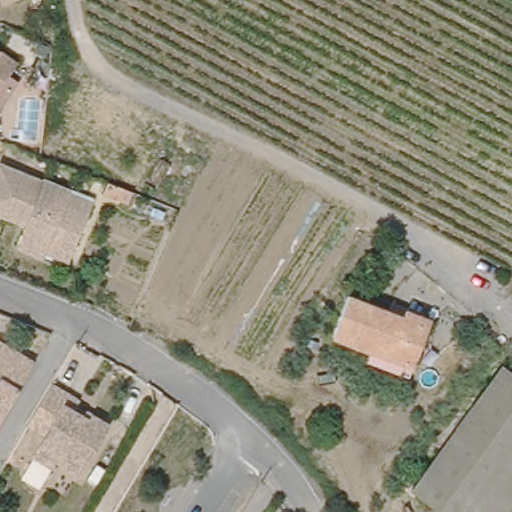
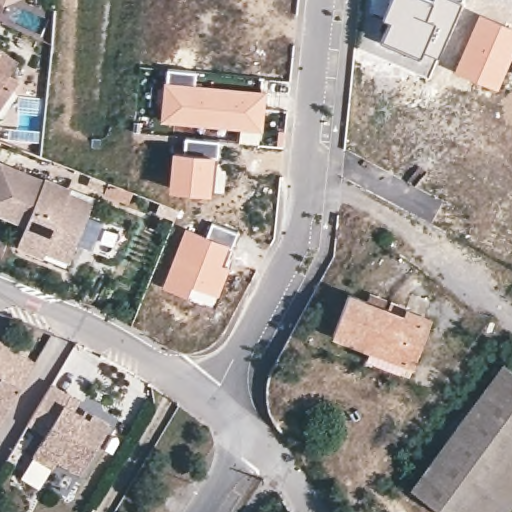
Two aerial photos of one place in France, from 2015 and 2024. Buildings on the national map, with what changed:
unchanged [(2,0),(6,0),(2,1),(2,0)]
unchanged [(44,8),(45,0),(56,0),(55,9),(44,8)]
new [(381,15),(388,0),(456,0),(460,2),(436,56),(422,50),(420,56),(379,40),(388,19),(381,15)]
new [(512,27),(512,57),(498,89),(453,71),(479,13),(512,27)]
unchanged [(23,52),(12,68),(21,74),(17,79),(8,74),(0,85),(0,36),(23,52)]
new [(167,66),(198,69),(196,83),(268,90),(260,144),(238,141),(240,129),(160,121),(167,66)]
new [(172,149),(182,149),(184,135),(220,140),(216,169),(212,193),(167,189),(172,149)]
unchanged [(41,252),(39,257),(19,248),(11,245),(21,223),(0,213),(0,166),(10,170),(11,168),(20,171),(19,174),(37,183),(40,177),(67,189),(65,192),(90,202),(87,209),(68,252),(65,261),(41,252)]
unchanged [(123,203),(99,193),(103,182),(118,188),(128,192),(123,203)]
new [(185,228),(205,235),(212,221),(240,232),(225,265),(230,267),(212,308),(161,286),(185,228)]
unchanged [(366,358),(370,349),(332,334),(349,293),(403,314),(406,308),(432,318),(413,366),(405,363),(400,372),(366,358)]
unchanged [(36,362),(0,421),(0,340),(36,362)]
unchanged [(412,487),(503,364),(512,371),(512,506),(508,512),(446,512),(412,487)]
unchanged [(80,474),(57,461),(53,467),(33,455),(45,434),(28,424),(52,384),(81,400),(75,409),(90,418),(92,414),(110,424),(80,474)]

